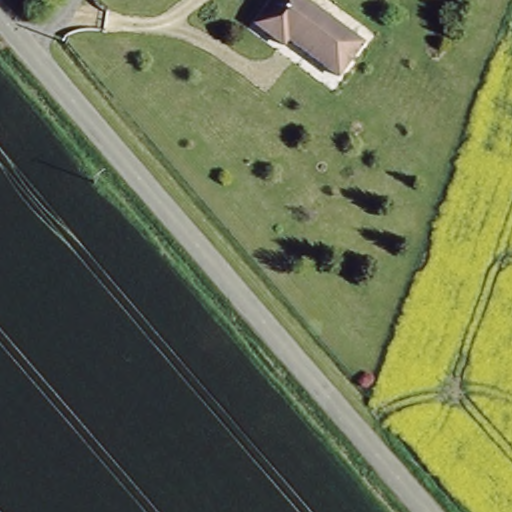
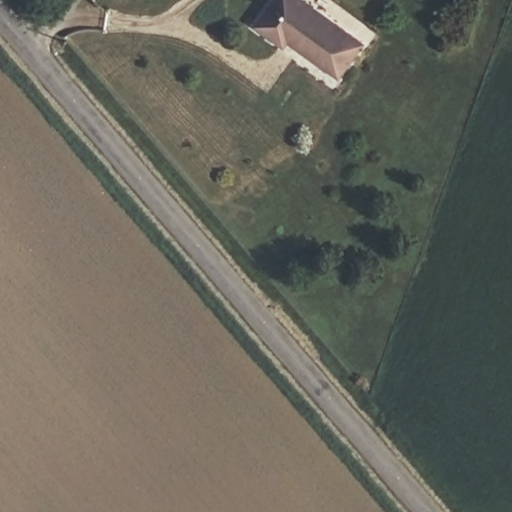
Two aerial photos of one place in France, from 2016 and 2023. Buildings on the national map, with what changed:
unchanged [(367,37),(346,70),(291,37),(287,42),(260,26),(277,0),(305,0),(367,37)]

